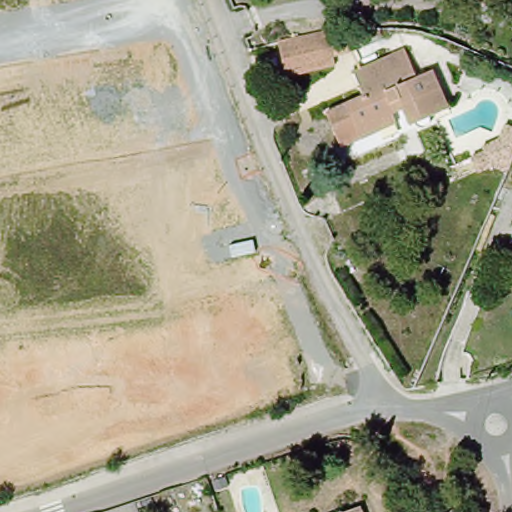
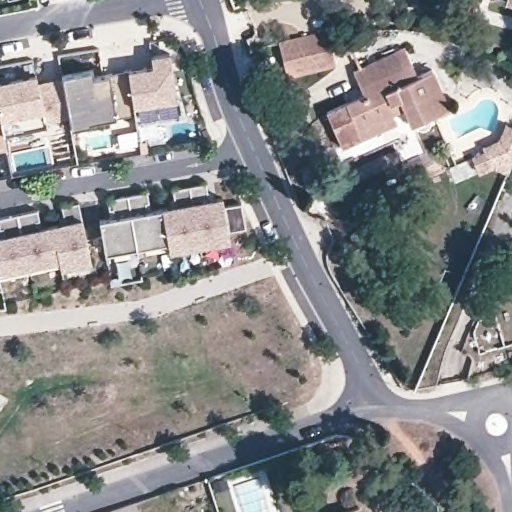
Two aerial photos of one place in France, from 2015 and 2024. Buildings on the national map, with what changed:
unchanged [(492,0),(512,0),(512,3),(507,2),(492,1),(492,0)]
unchanged [(329,34),(338,67),(333,66),(288,77),(280,45),(329,34)]
unchanged [(353,137),(349,127),(334,132),(326,112),(370,96),(359,65),(408,47),(420,79),(441,71),(451,98),(413,112),(406,92),(393,96),(398,109),(402,120),(353,137)]
new [(134,106),(133,116),(115,120),(70,129),(67,120),(43,125),(5,135),(3,119),(0,120),(0,83),(33,76),(35,83),(60,77),(90,72),(92,79),(131,73),(151,70),(150,56),(168,52),(177,102),(134,106)]
unchanged [(510,165),(509,165),(498,160),(480,167),(473,148),(487,142),(484,137),(500,131),(507,117),(512,119),(512,159),(510,165)]
new [(246,233),(225,237),(226,242),(168,252),(167,245),(105,259),(102,222),(222,201),(223,210),(241,207),(246,233)]
new [(60,272),(58,264),(0,275),(0,239),(78,222),(90,263),(60,272)]
unchanged [(111,512),(138,503),(141,512),(111,512)]

